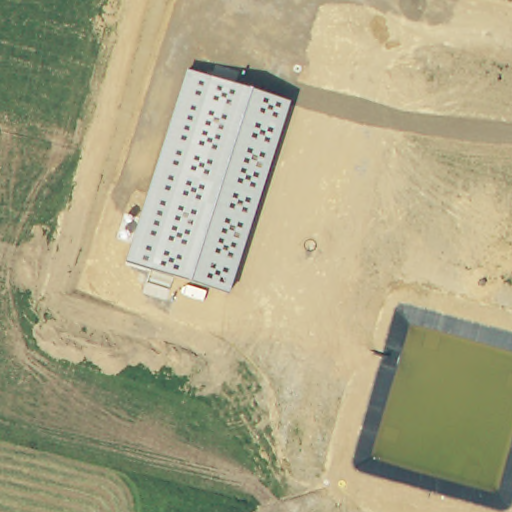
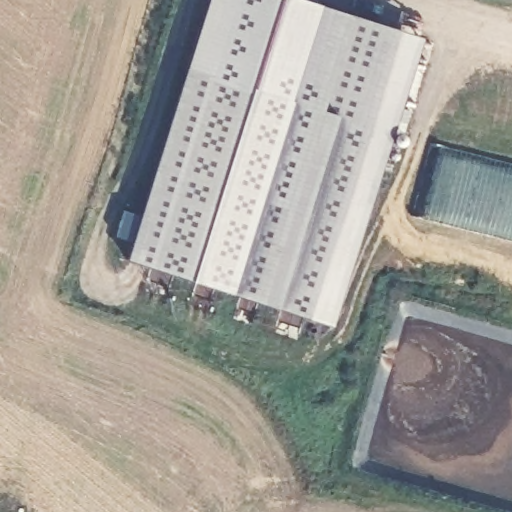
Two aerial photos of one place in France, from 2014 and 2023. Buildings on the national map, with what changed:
new [(210,0),(305,0),(353,15),(323,112),(289,102),(186,69),(210,0)]
new [(289,102),(323,112),(353,15),(421,38),(329,326),(227,295),(289,102)]
unchanged [(289,102),(227,295),(125,262),(186,69),(289,102)]

